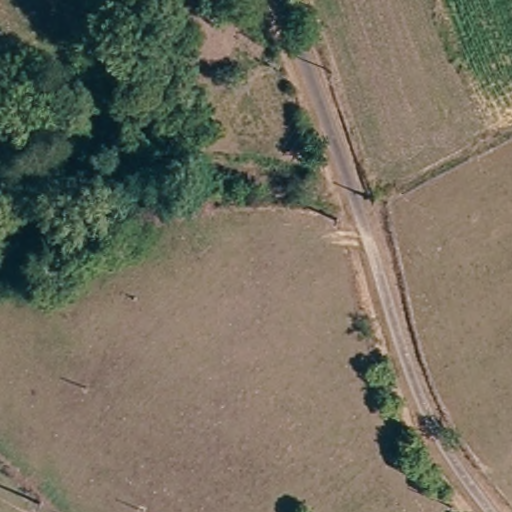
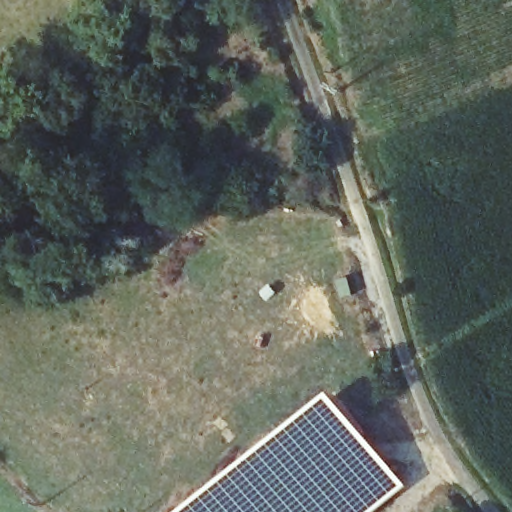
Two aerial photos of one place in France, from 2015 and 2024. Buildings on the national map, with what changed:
new [(184,512),(336,393),(409,486),(376,512),(184,512)]

